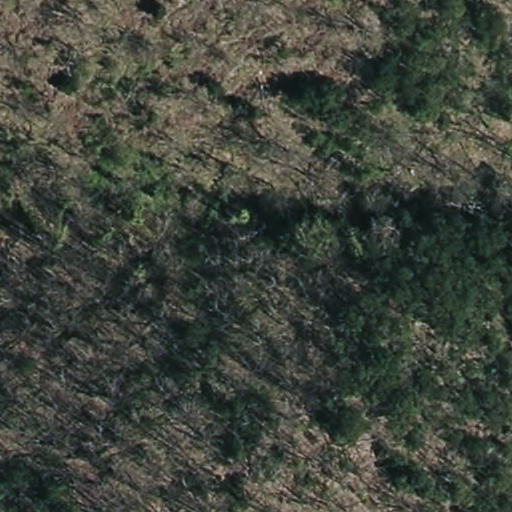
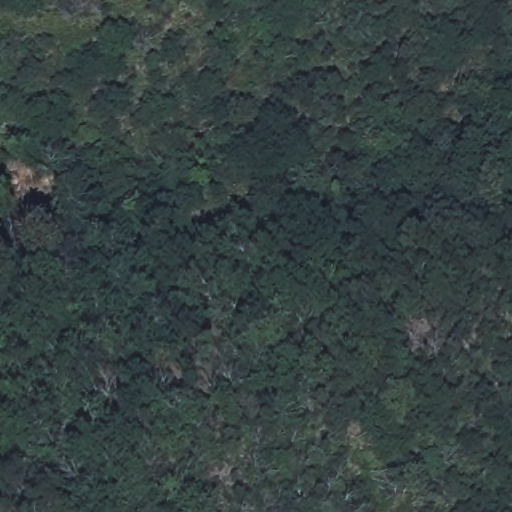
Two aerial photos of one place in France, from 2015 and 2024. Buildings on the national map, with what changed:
[]

